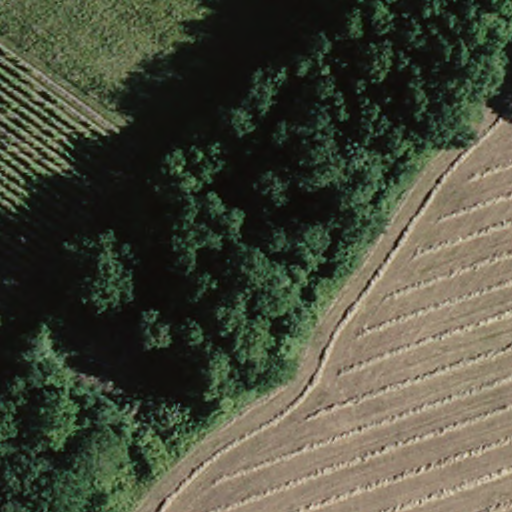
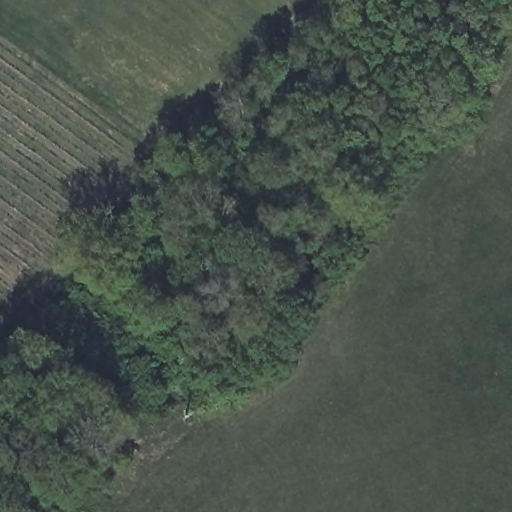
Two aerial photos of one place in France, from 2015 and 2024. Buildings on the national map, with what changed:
[]

